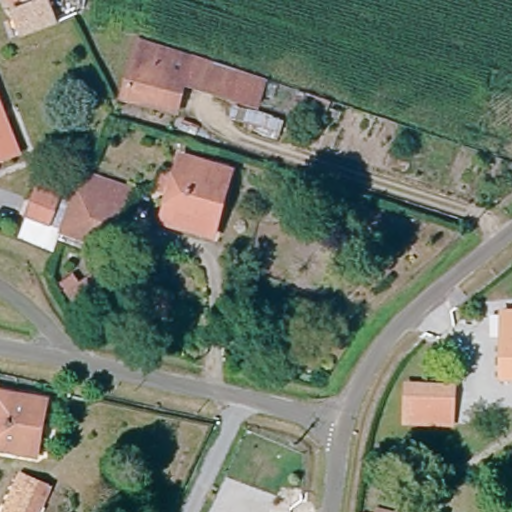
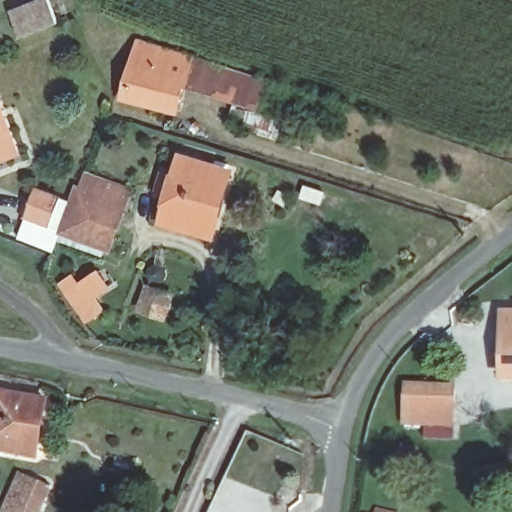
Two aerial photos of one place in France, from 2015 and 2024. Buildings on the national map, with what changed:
unchanged [(19,37),(9,14),(43,0),(47,0),(56,22),(34,30),(19,37)]
unchanged [(257,101),(183,77),(175,106),(124,94),(139,39),(195,56),(195,55),(208,60),(264,75),(263,80),(257,101)]
unchanged [(0,160),(0,109),(0,110),(18,153),(0,160)]
unchanged [(181,185),(187,165),(232,178),(215,239),(170,226),(177,200),(162,195),(167,180),(181,185)]
unchanged [(117,207),(102,249),(57,232),(72,191),(117,207)]
unchanged [(56,202),(46,230),(23,222),(33,194),(56,202)]
new [(111,288),(93,300),(101,312),(86,323),(58,283),(73,273),(79,281),(98,268),(111,288)]
unchanged [(163,318),(140,310),(147,291),(170,299),(163,318)]
unchanged [(498,331),(498,309),(512,309),(512,374),(497,374),(498,331)]
unchanged [(450,419),(404,417),(406,380),(452,382),(450,419)]
unchanged [(30,458),(0,452),(0,394),(41,402),(30,458)]
unchanged [(16,473),(41,483),(29,510),(33,512),(0,512),(0,509),(16,473)]
unchanged [(372,511),(374,512),(372,512),(372,511)]

